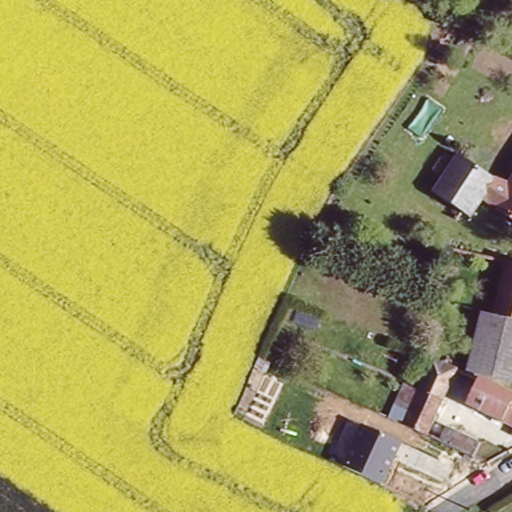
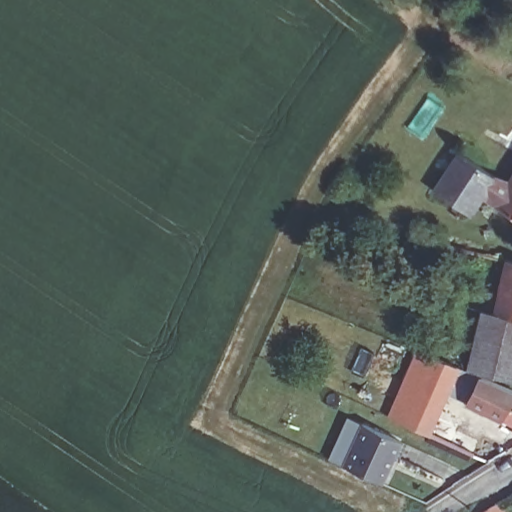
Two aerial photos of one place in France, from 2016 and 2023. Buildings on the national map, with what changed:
unchanged [(512,183),(512,216),(485,198),(474,215),(436,189),(463,150),(512,183)]
unchanged [(450,249),(459,252),(454,260),(445,257),(450,249)]
unchanged [(470,365),(483,310),(497,313),(510,258),(512,258),(512,376),(483,369),(470,365)]
unchanged [(413,391),(430,356),(453,366),(421,433),(398,422),(385,416),(400,384),(413,391)]
unchanged [(512,388),(512,422),(472,399),(483,376),(512,388)]
unchanged [(402,441),(387,486),(343,467),(360,423),(402,441)]
unchanged [(435,427),(443,424),(477,439),(468,456),(430,437),(435,427)]

